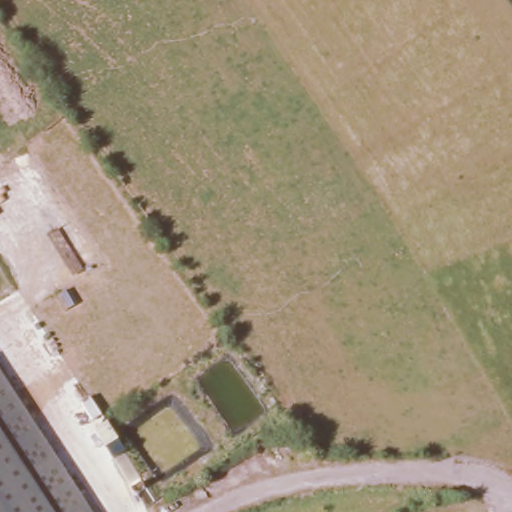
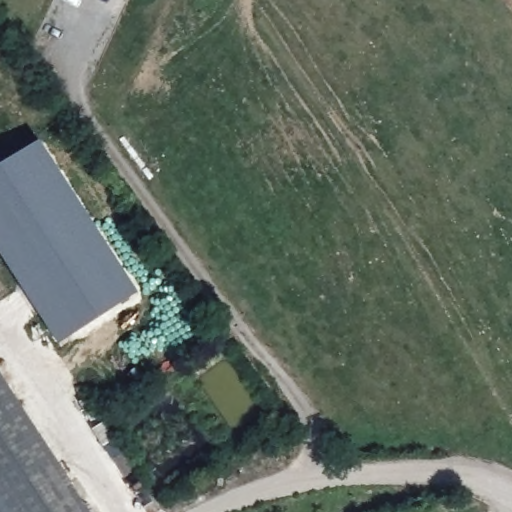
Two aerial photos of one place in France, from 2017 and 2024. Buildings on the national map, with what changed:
new [(0,171),(43,144),(141,295),(60,345),(0,252),(0,171)]
unchanged [(0,367),(92,512),(0,512),(0,367)]

